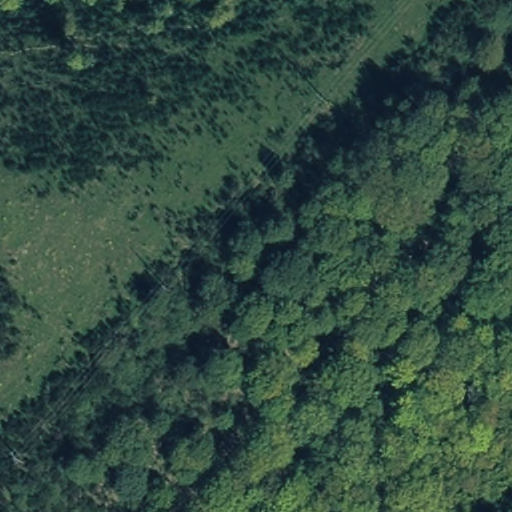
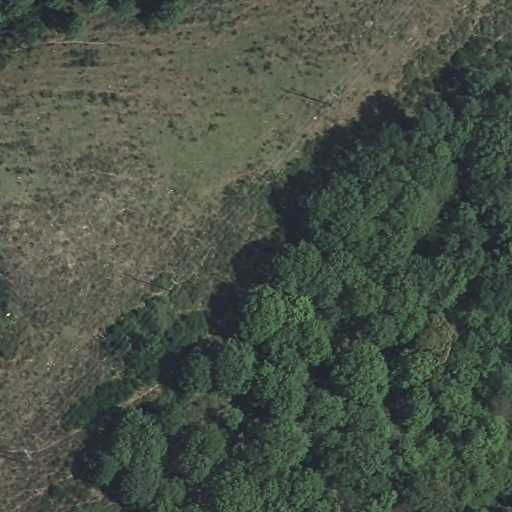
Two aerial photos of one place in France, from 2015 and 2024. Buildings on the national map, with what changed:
[]

